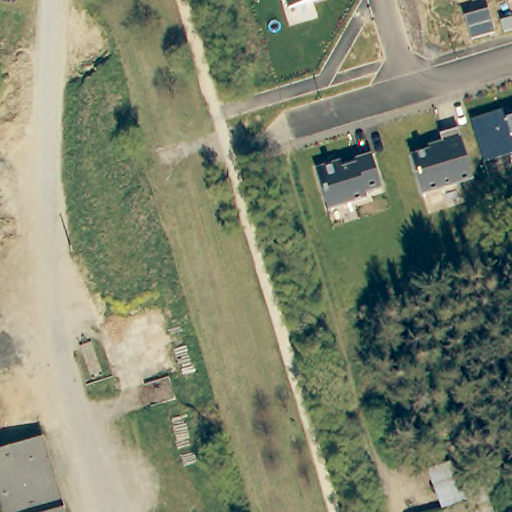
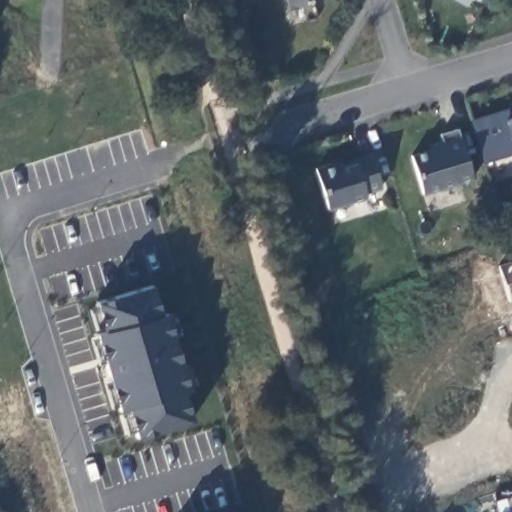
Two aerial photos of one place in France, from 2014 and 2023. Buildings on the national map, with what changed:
unchanged [(287,7),(285,0),(314,0),(287,7)]
unchanged [(467,7),(455,0),(471,0),(467,7)]
demolished [(328,107),(332,125),(338,123),(342,136),(345,149),(340,151),(347,175),(322,183),(311,145),(302,114),(328,107)]
unchanged [(485,161),(472,119),(502,110),(504,117),(512,115),(512,152),(485,161)]
unchanged [(425,195),(412,153),(428,147),(427,145),(443,141),(441,134),(457,128),(473,180),(425,195)]
new [(368,194),(369,198),(330,209),(317,169),(339,161),(341,166),(356,161),(355,158),(370,154),(383,190),(368,194)]
new [(512,263),(512,302),(509,302),(499,267),(512,263)]
new [(159,312),(166,310),(188,390),(183,391),(191,420),(135,438),(126,408),(118,410),(95,333),(105,329),(96,303),(152,286),(159,312)]
demolished [(63,512),(0,512),(0,448),(40,435),(63,512)]
demolished [(461,482),(473,478),(478,494),(442,507),(430,470),(454,461),(461,482)]
unchanged [(499,512),(493,492),(511,487),(512,491),(512,512),(499,512)]

